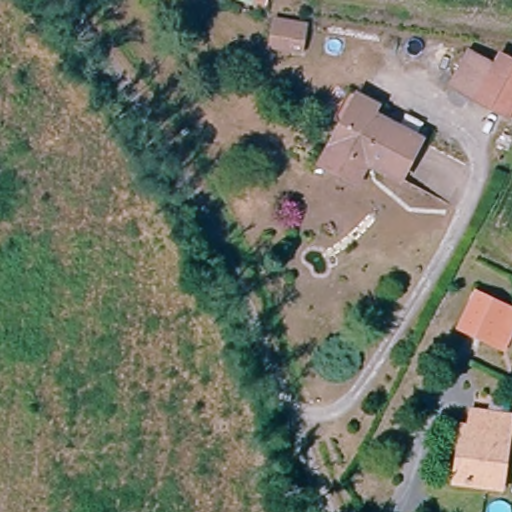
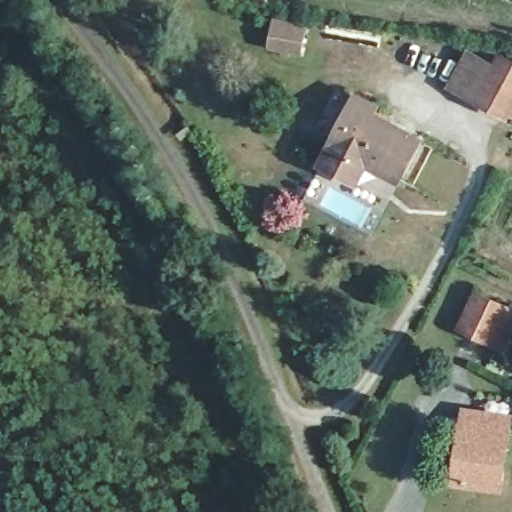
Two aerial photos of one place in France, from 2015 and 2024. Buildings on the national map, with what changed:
unchanged [(273,0),(268,11),(238,0),(273,0)]
unchanged [(307,29),(304,56),(269,51),(272,25),(307,29)]
unchanged [(503,74),(512,61),(512,124),(458,91),(476,55),(503,74)]
unchanged [(369,167),(358,191),(318,170),(358,95),(382,109),(376,120),(422,143),(403,187),(369,167)]
unchanged [(510,323),(493,351),(470,338),(484,310),(510,323)]
unchanged [(469,432),(472,415),(512,421),(512,447),(505,498),(452,490),(461,431),(469,432)]

